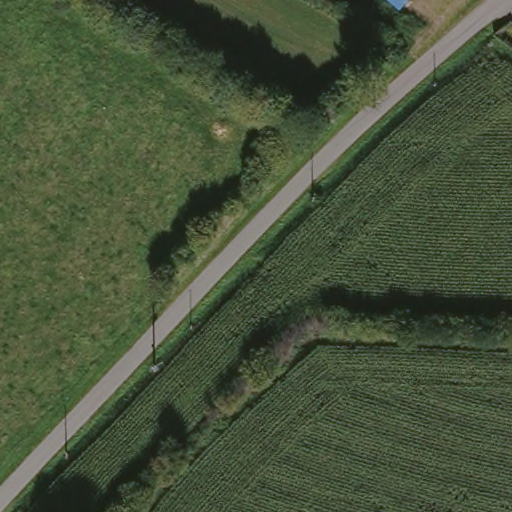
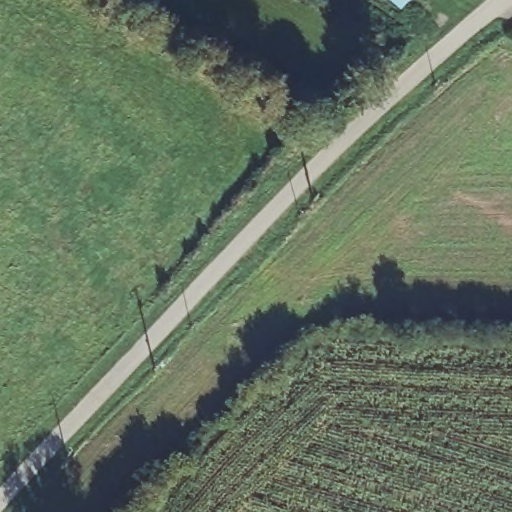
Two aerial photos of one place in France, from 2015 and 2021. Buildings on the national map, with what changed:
unchanged [(404,8),(394,0),(410,0),(404,8)]

